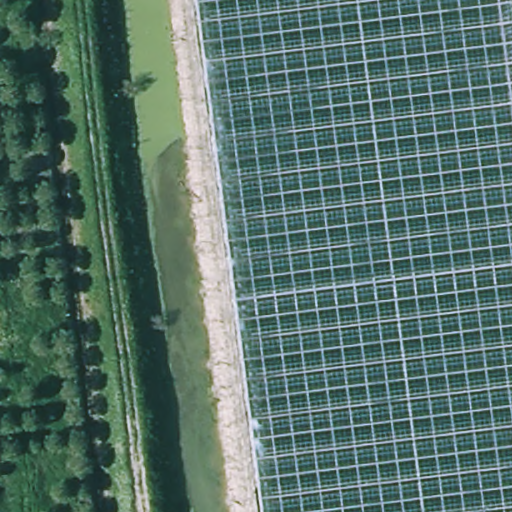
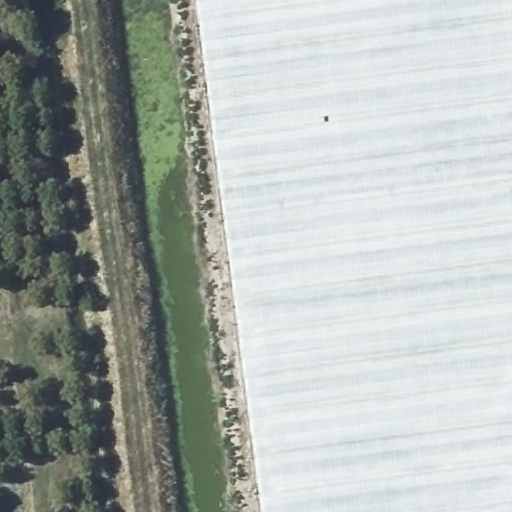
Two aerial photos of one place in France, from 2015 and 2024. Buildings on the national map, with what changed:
unchanged [(512,512),(266,512),(201,0),(512,0),(512,512)]

